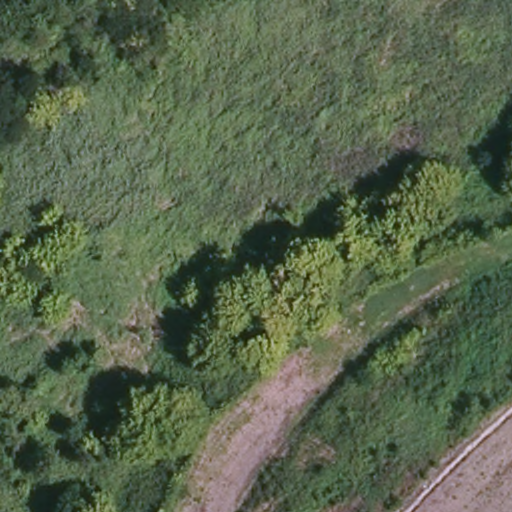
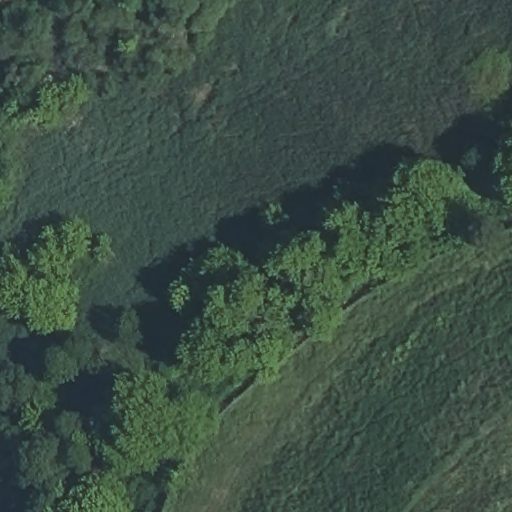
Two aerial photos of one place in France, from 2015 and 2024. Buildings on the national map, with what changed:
[]

